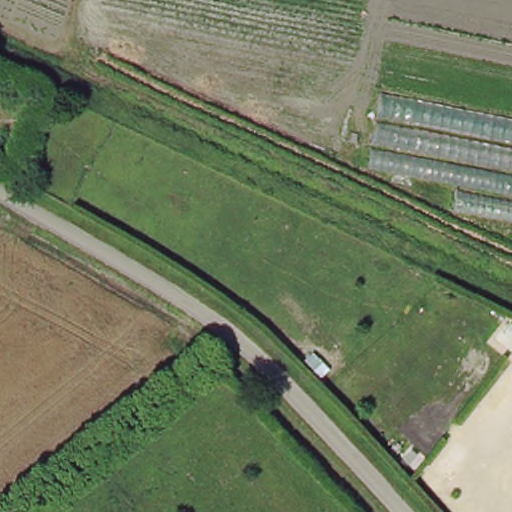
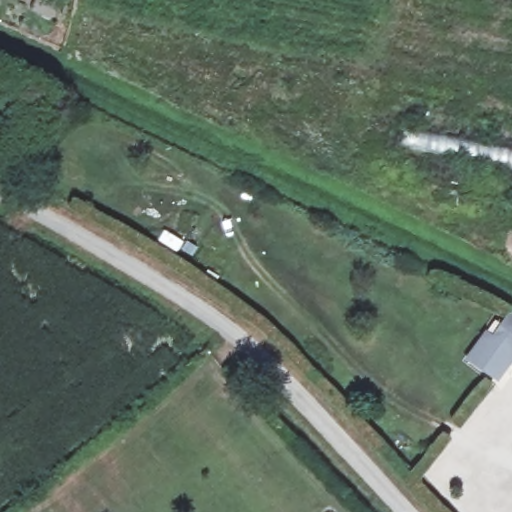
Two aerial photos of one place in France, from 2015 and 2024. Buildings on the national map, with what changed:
new [(457,184),(375,169),(379,144),(370,141),(381,92),(512,118),(512,222),(454,210),(457,184)]
new [(510,312),(512,313),(512,357),(489,341),(510,312)]

